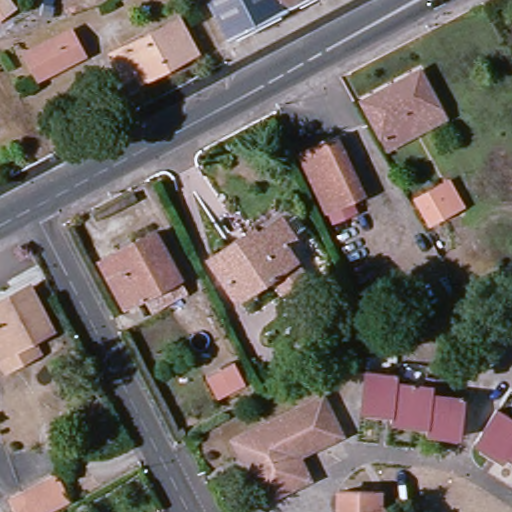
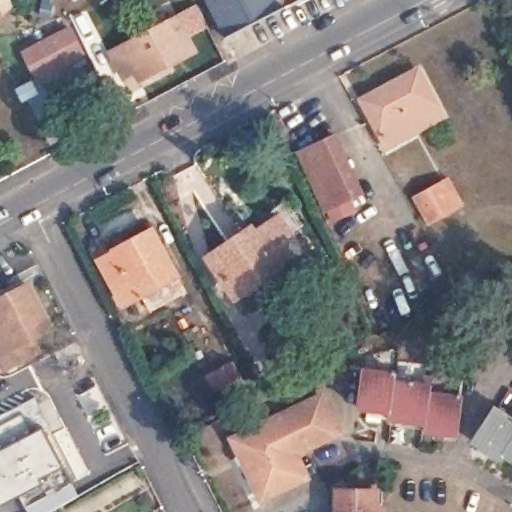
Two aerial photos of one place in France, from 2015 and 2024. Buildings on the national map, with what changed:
unchanged [(0,17),(0,0),(12,0),(16,5),(0,17)]
unchanged [(223,36),(204,0),(241,0),(251,22),(223,36)]
unchanged [(241,0),(295,0),(251,22),(241,0)]
unchanged [(191,54),(179,61),(136,83),(132,74),(121,79),(108,56),(176,23),(191,54)]
unchanged [(79,58),(58,70),(35,81),(21,56),(66,34),(79,58)]
unchanged [(416,71),(440,118),(401,138),(386,146),(362,99),(416,71)]
unchanged [(358,198),(320,214),(295,158),(333,141),(358,198)]
unchanged [(413,199),(435,188),(443,184),(456,208),(448,213),(425,224),(413,199)]
unchanged [(265,284),(258,273),(225,295),(200,258),(241,229),(244,234),(267,219),(279,236),(269,243),(279,259),(286,270),(265,284)]
unchanged [(145,309),(137,294),(116,305),(94,264),(110,254),(108,251),(145,230),(169,276),(177,290),(145,309)]
unchanged [(29,332),(35,344),(1,361),(0,358),(0,292),(5,289),(24,279),(47,323),(29,332)]
unchanged [(246,384),(220,398),(209,378),(235,364),(246,384)]
unchanged [(91,384),(79,389),(72,377),(85,371),(91,384)]
unchanged [(394,374),(394,381),(420,385),(422,376),(439,378),(437,394),(459,397),(455,436),(422,432),(423,424),(388,421),(389,413),(359,409),(363,371),(394,374)]
unchanged [(332,434),(289,454),(300,478),(254,500),(226,439),(315,396),(332,434)]
new [(65,467),(80,496),(51,512),(29,512),(19,494),(1,504),(0,501),(0,414),(36,397),(46,429),(65,467)]
unchanged [(512,425),(512,464),(504,459),(501,464),(474,447),(495,414),(512,425)]
demolished [(4,502),(12,498),(34,487),(50,478),(64,504),(50,512),(9,512),(4,502)]
unchanged [(342,490),(377,490),(377,512),(342,512),(342,490)]

